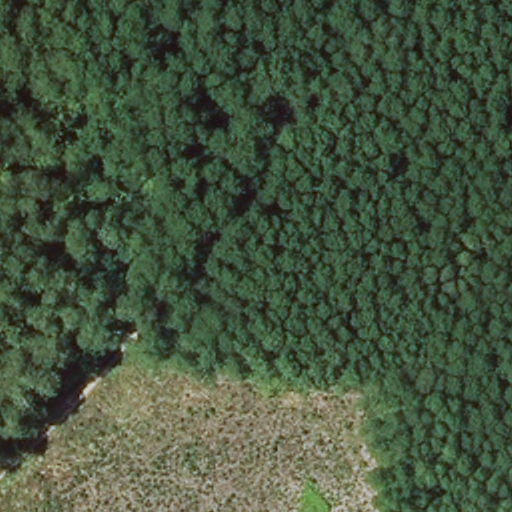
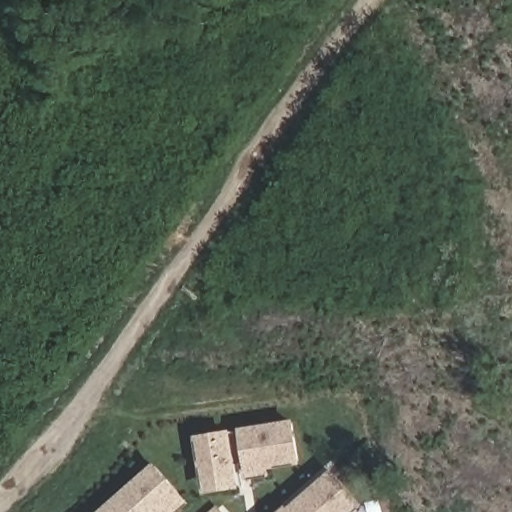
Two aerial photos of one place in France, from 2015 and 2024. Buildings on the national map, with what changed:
new [(254,478),(253,468),(252,469),(251,463),(237,464),(239,479),(214,482),(208,484),(201,437),(296,423),(302,461),(270,466),(271,475),(254,478)]
new [(158,465),(183,494),(190,503),(179,512),(176,512),(170,506),(163,512),(104,512),(158,465)]
new [(336,474),(363,505),(355,512),(292,512),(336,474)]
new [(219,509),(221,512),(216,512),(219,509)]
new [(289,509),(291,512),(286,512),(289,509)]

